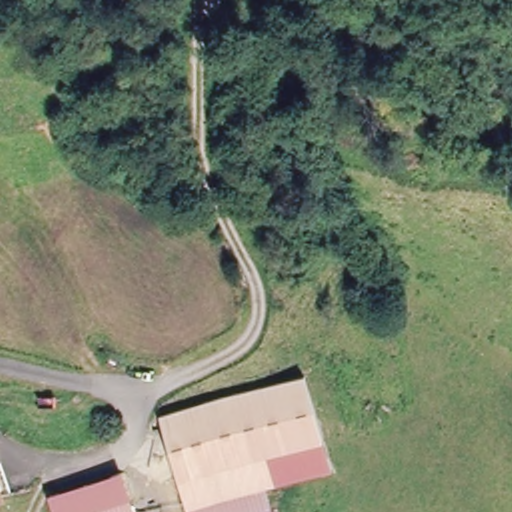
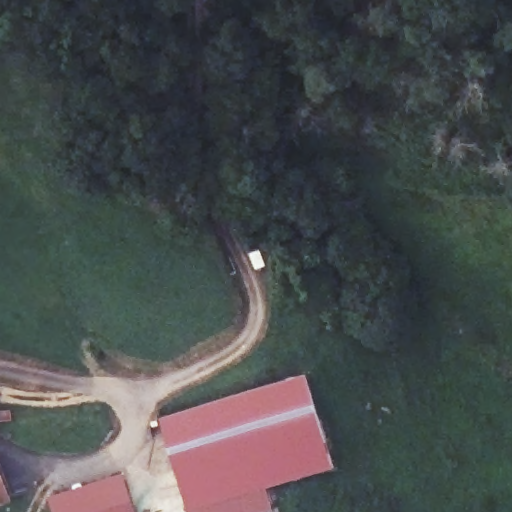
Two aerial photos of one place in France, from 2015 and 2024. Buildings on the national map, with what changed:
unchanged [(187,512),(162,419),(303,377),(327,469),(263,489),(270,512),(187,512)]
unchanged [(103,425),(99,418),(107,413),(110,421),(103,425)]
unchanged [(125,472),(137,512),(59,512),(54,496),(71,490),(125,472)]
unchanged [(0,498),(0,489),(4,497),(0,498)]

